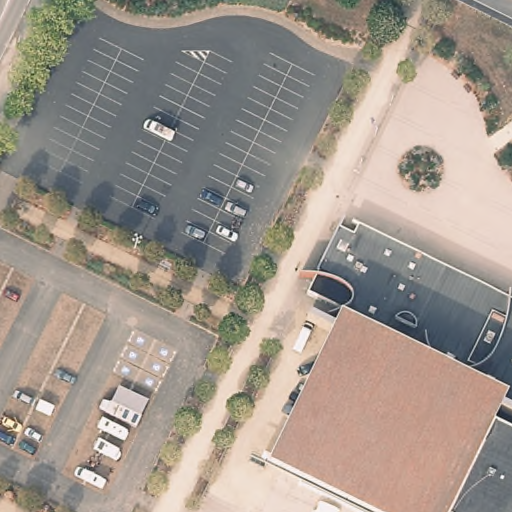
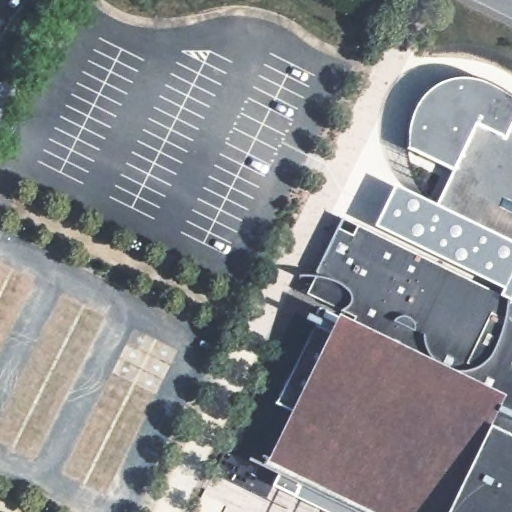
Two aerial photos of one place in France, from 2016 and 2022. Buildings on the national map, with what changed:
new [(407,149),(408,129),(410,116),(416,105),(425,94),(437,84),(452,78),(465,77),(481,80),(497,87),(510,97),(512,99),(512,124),(511,126),(512,127),(512,248),(452,218),(436,203),(452,171),(407,149)]
unchanged [(310,404),(352,318),(304,293),(335,229),(350,237),(355,225),(498,294),(512,306),(512,512),(451,512),(357,440),(310,404)]
unchanged [(512,306),(498,294),(512,301),(512,306)]
unchanged [(298,486),(303,476),(281,465),(310,404),(357,440),(322,498),(298,486)]
unchanged [(451,512),(350,512),(322,498),(357,440),(451,512)]

